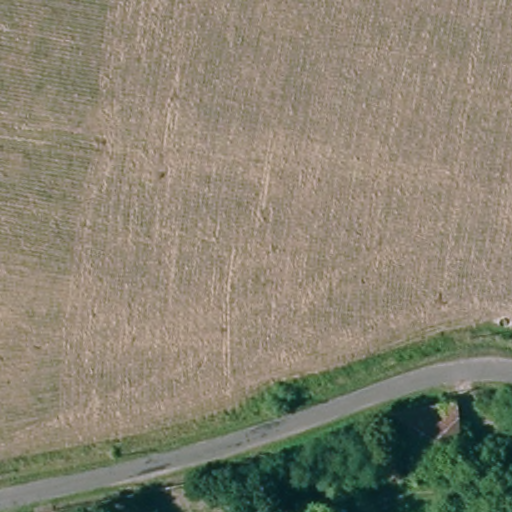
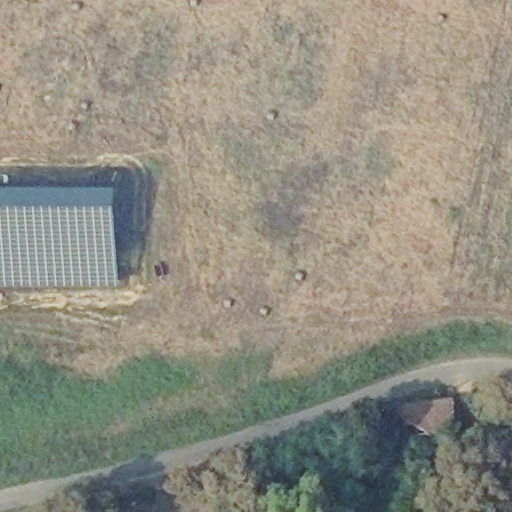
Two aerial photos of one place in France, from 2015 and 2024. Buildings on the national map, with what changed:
new [(122,286),(0,285),(0,186),(122,186),(122,286)]
unchanged [(452,397),(457,462),(392,468),(387,410),(452,397)]

